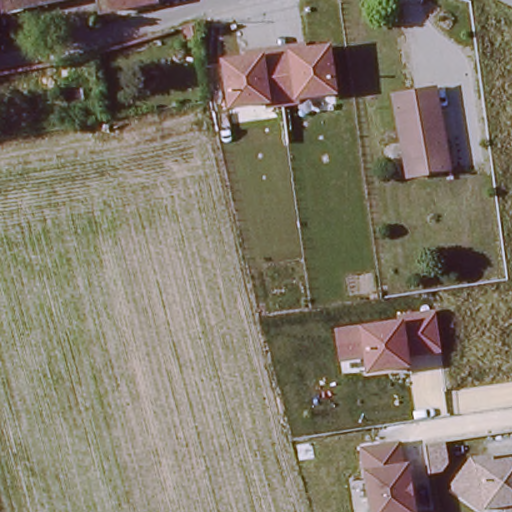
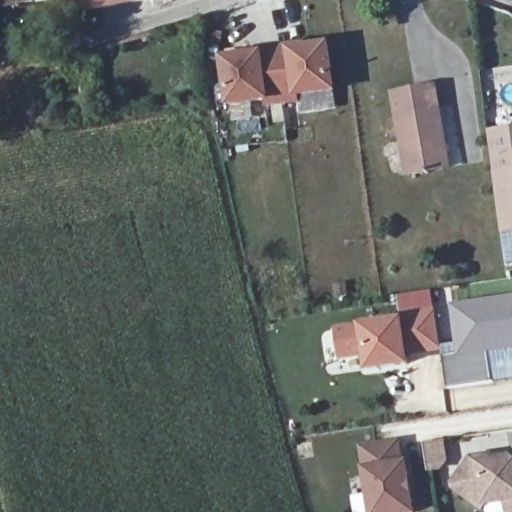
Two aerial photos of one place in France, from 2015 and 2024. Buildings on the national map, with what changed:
unchanged [(63,0),(40,5),(5,14),(2,0),(63,0)]
unchanged [(99,0),(154,0),(102,10),(99,0)]
unchanged [(244,55),(243,49),(305,41),(306,46),(330,43),(337,94),(301,99),(302,104),(265,109),(265,103),(227,109),(220,58),(244,55)]
unchanged [(449,168),(408,176),(393,96),(435,88),(449,168)]
new [(495,171),(488,132),(512,129),(512,232),(503,233),(495,171)]
new [(444,357),(458,356),(452,305),(512,295),(512,350),(487,353),(492,381),(450,388),(444,357)]
unchanged [(442,353),(407,358),(408,364),(363,370),(360,359),(342,362),(337,323),(437,309),(442,353)]
unchanged [(415,512),(369,512),(360,466),(366,465),(363,446),(405,440),(415,512)]
unchanged [(505,501),(488,505),(482,512),(450,486),(469,460),(508,454),(512,457),(512,512),(507,512),(505,501)]

